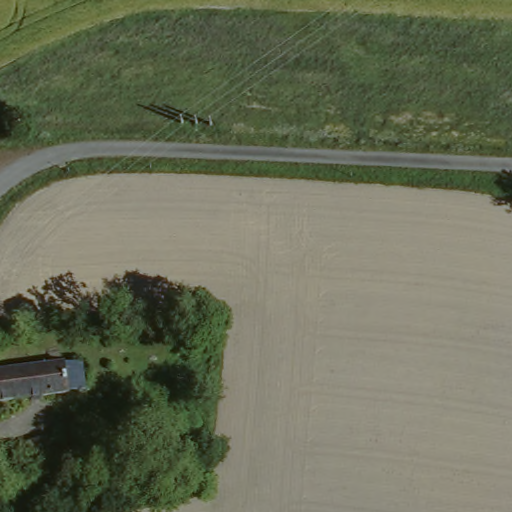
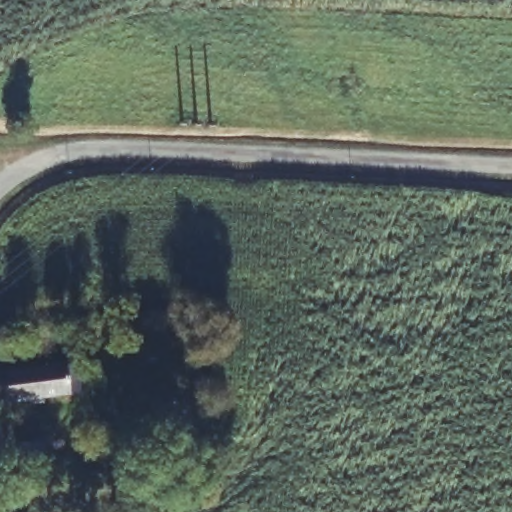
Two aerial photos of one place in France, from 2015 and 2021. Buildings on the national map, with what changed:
unchanged [(0,403),(0,373),(67,367),(79,367),(81,394),(68,395),(68,397),(0,403)]
unchanged [(15,446),(60,437),(64,457),(20,467),(15,446)]

